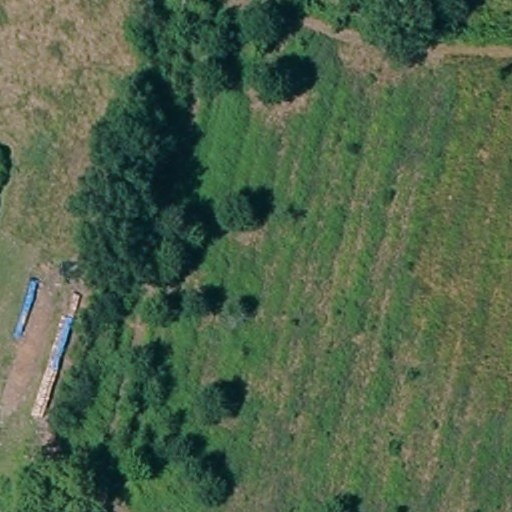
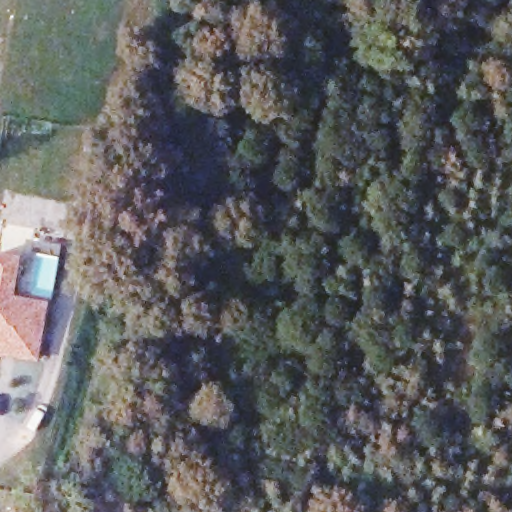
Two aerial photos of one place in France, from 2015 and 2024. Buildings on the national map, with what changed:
new [(20,256),(14,295),(49,302),(38,362),(0,355),(0,253),(20,256)]

